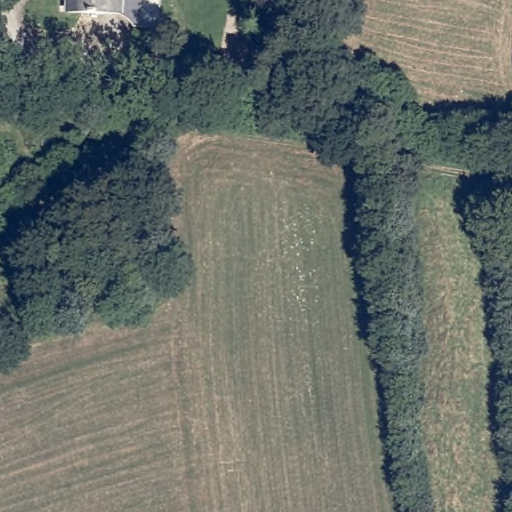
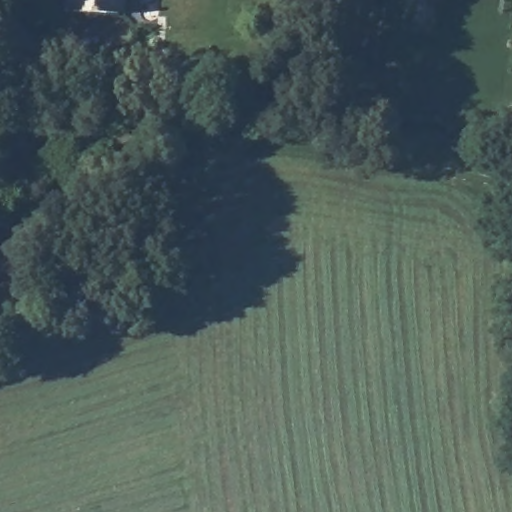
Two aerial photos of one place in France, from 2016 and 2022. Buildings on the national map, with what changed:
unchanged [(122,12),(59,9),(59,4),(59,0),(147,0),(146,15),(145,26),(122,25),(122,12)]

